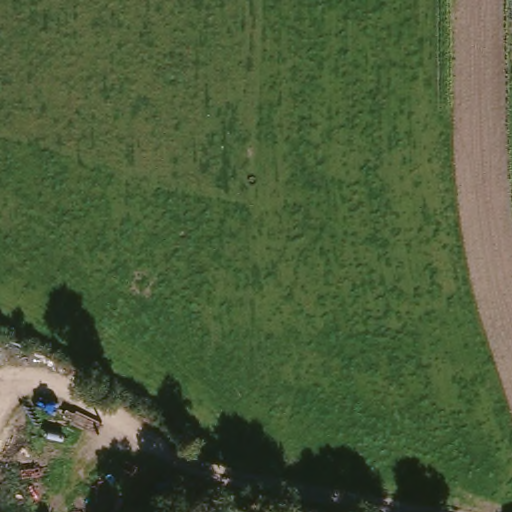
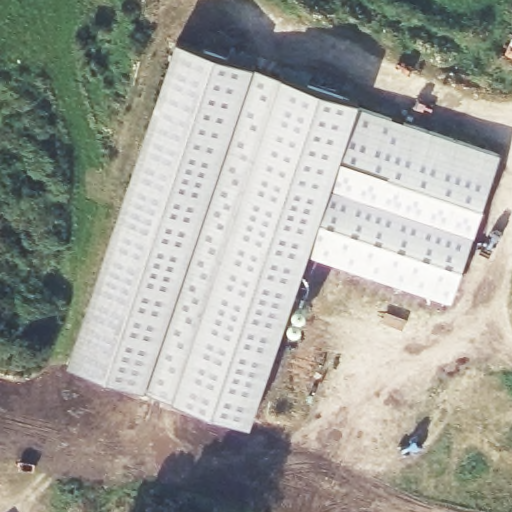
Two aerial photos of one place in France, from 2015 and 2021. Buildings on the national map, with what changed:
new [(177,38),(359,99),(357,104),(501,153),(451,301),(307,254),(252,426),(66,364),(177,38)]
new [(302,326),(301,328),(297,331),(295,331),(292,331),(291,330),(290,328),(288,327),(289,322),(294,306),(295,305),(297,303),(299,303),(302,304),(303,304),(305,305),(305,306),(307,309),(307,310),(307,312),(306,313),(302,326)]

